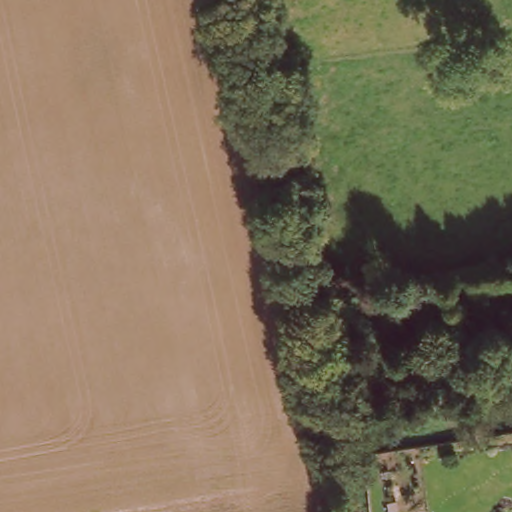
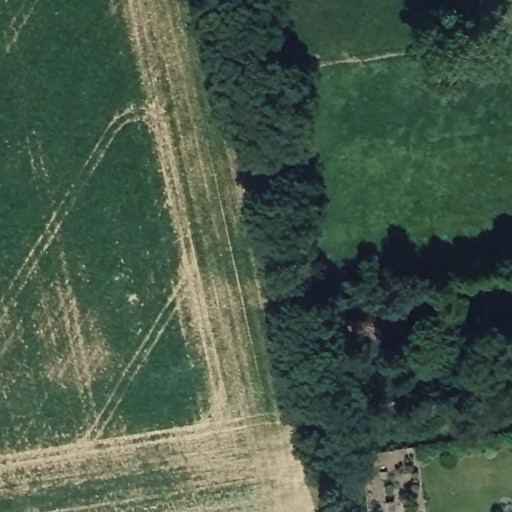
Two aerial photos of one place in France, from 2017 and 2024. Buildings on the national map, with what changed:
unchanged [(375,456),(381,512),(352,512),(346,460),(375,456)]

